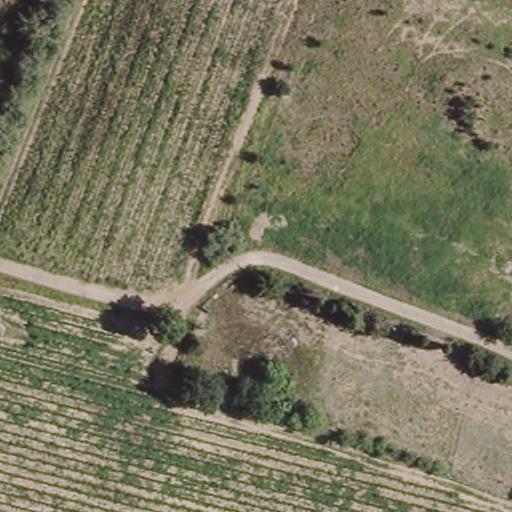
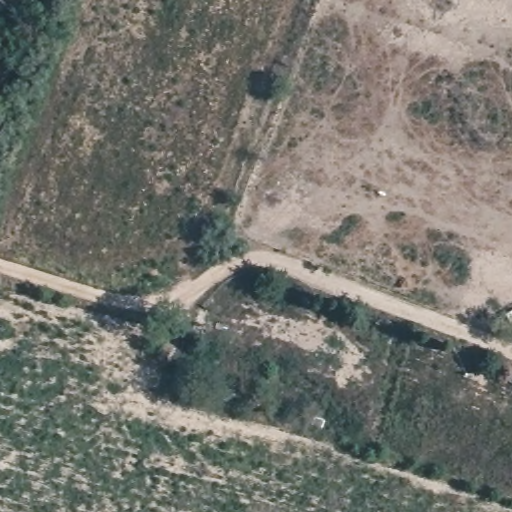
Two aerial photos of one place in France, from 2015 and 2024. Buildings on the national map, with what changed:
unchanged [(265,348),(279,352),(272,383),(256,385),(265,348)]

